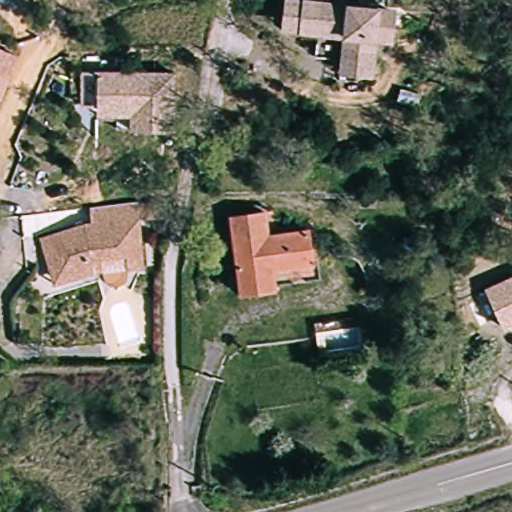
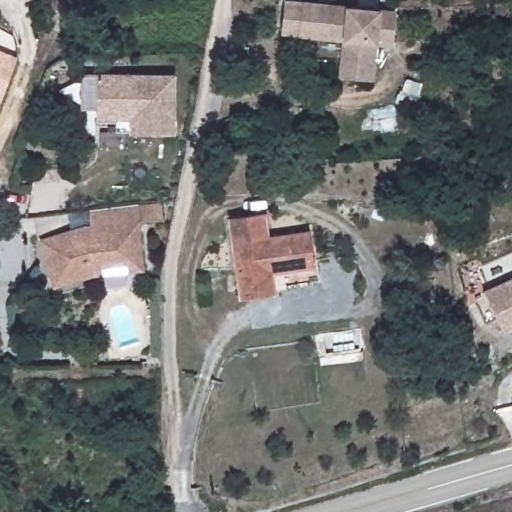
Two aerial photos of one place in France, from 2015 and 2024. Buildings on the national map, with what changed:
unchanged [(344,5),(379,7),(394,10),(392,46),(376,45),(373,79),(336,75),(339,39),(279,34),(283,0),(302,0),(344,5)]
unchanged [(0,50),(16,56),(0,99),(0,50)]
unchanged [(129,132),(128,118),(94,119),(94,74),(173,74),(173,132),(129,132)]
unchanged [(93,275),(52,288),(38,239),(78,226),(90,225),(89,210),(134,204),(156,202),(157,220),(138,221),(143,270),(93,275)]
unchanged [(229,215),(263,210),(266,237),(306,232),(309,250),(235,258),(229,215)]
unchanged [(240,295),(235,258),(309,250),(313,278),(273,285),(274,291),(240,295)]
unchanged [(512,277),(512,323),(504,326),(499,313),(489,317),(478,290),(488,286),(512,277)]

